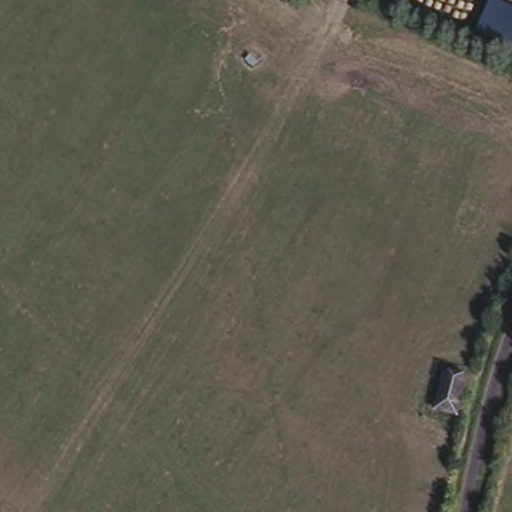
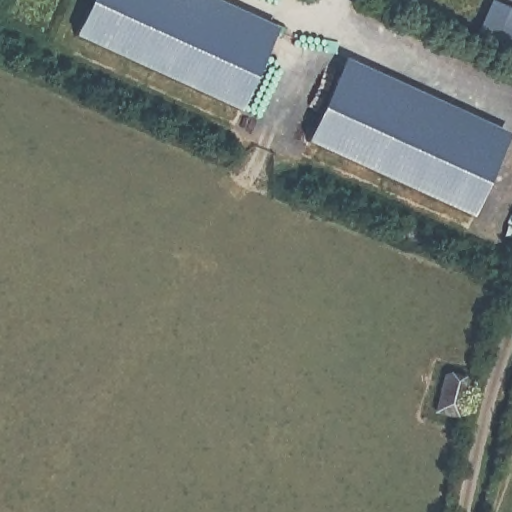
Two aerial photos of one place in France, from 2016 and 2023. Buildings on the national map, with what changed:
new [(278,30),(239,115),(70,39),(89,0),(209,0),(278,30)]
unchanged [(512,6),(512,60),(473,44),(490,0),(497,0),(512,6)]
new [(506,137),(471,220),(304,146),(343,62),(506,137)]
unchanged [(459,366),(450,398),(432,393),(442,360),(459,366)]

